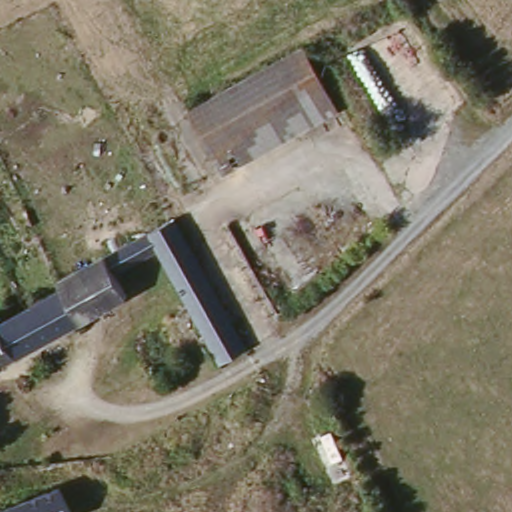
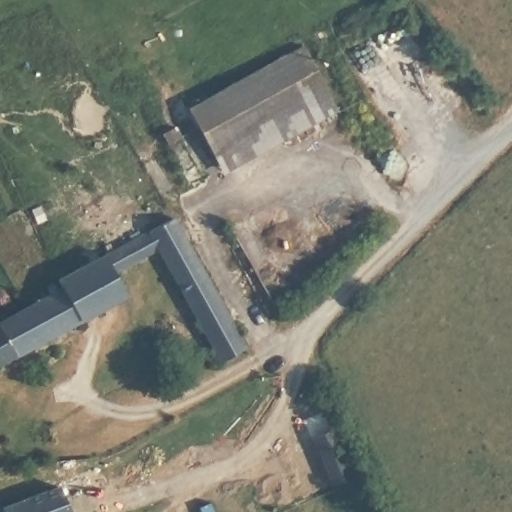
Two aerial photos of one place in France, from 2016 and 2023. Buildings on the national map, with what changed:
unchanged [(221,178),(182,111),(298,48),(335,115),(221,178)]
unchanged [(246,329),(250,334),(222,354),(153,258),(109,284),(119,300),(0,370),(0,322),(169,223),(246,329)]
unchanged [(0,504),(56,482),(69,512),(0,512),(0,504)]

